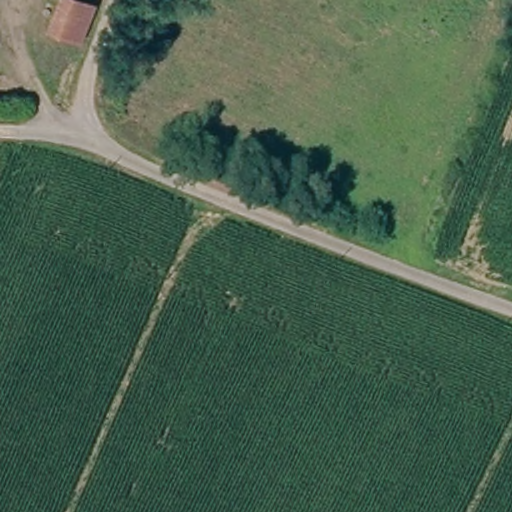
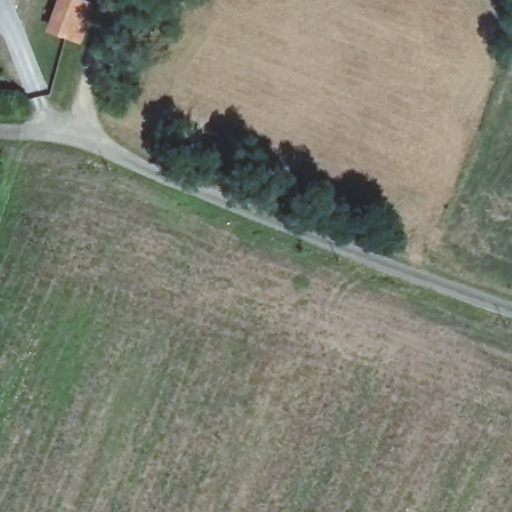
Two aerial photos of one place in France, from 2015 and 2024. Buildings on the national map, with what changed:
unchanged [(57,0),(76,0),(97,8),(82,45),(44,33),(57,0)]

